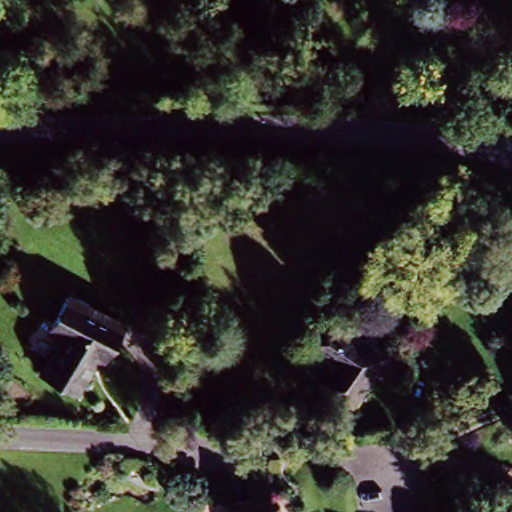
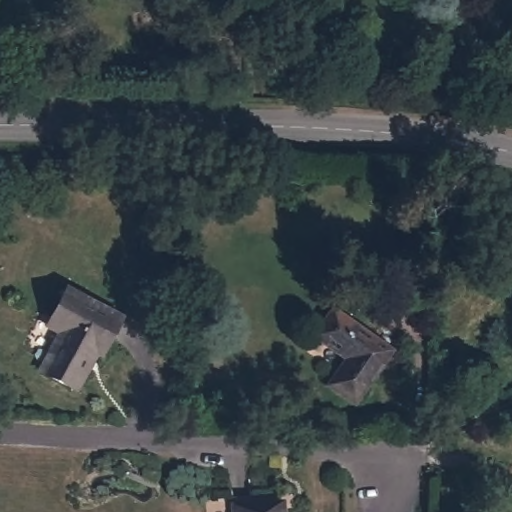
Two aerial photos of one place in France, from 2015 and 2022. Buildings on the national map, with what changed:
unchanged [(101,355),(95,352),(74,391),(40,373),(60,333),(46,326),(65,291),(120,320),(101,355)]
unchanged [(358,402),(332,383),(351,358),(318,336),(336,310),(396,351),(358,402)]
unchanged [(283,503),(283,512),(232,512),(231,506),(283,503)]

